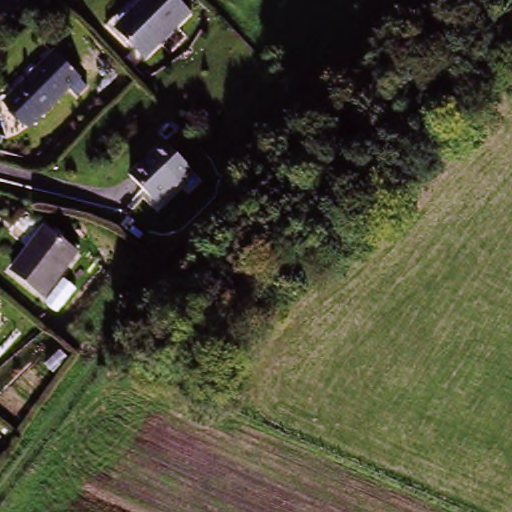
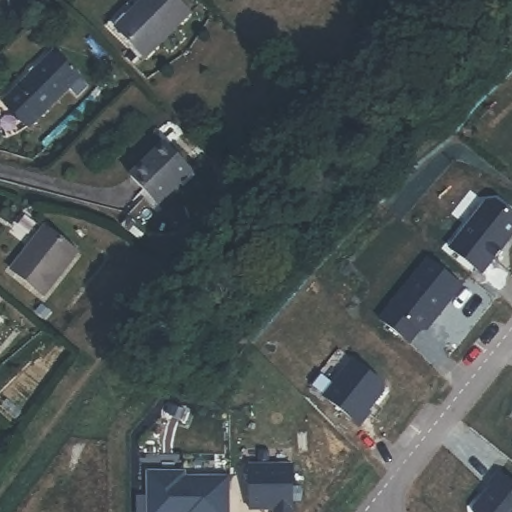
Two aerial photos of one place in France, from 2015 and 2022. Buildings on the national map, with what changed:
unchanged [(190,11),(145,57),(120,34),(140,12),(138,10),(147,0),(179,0),(190,11)]
unchanged [(82,76),(43,113),(32,125),(8,101),(20,89),(57,51),(82,76)]
unchanged [(156,144),(190,178),(162,208),(127,173),(156,144)]
new [(450,254),(485,208),(495,207),(512,220),(512,241),(510,243),(509,242),(503,250),(505,251),(482,279),(450,254)]
unchanged [(75,252),(40,300),(7,276),(42,229),(75,252)]
new [(461,285),(426,327),(418,328),(408,342),(378,318),(427,258),(461,285)]
new [(353,366),(383,390),(384,397),(368,417),(370,418),(360,431),(325,402),(353,366)]
new [(295,510),(293,510),(294,512),(272,512),(272,508),(249,509),(248,465),(293,462),(295,510)]
new [(187,477),(229,476),(229,512),(147,512),(147,473),(186,470),(187,477)]
new [(512,512),(472,512),(471,508),(490,488),(487,484),(498,470),(512,480),(512,512)]

